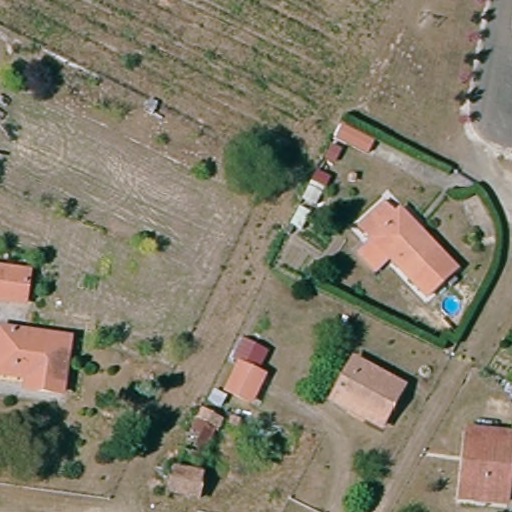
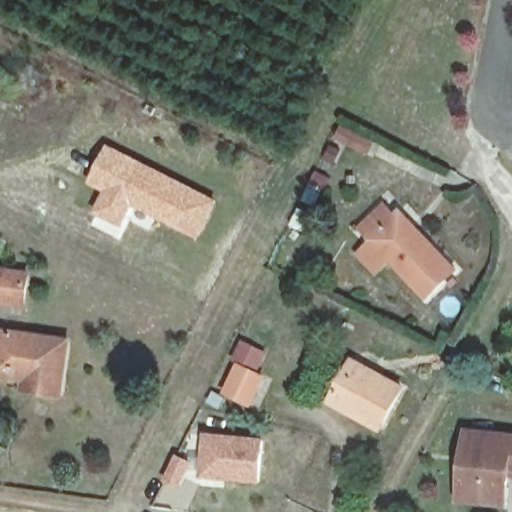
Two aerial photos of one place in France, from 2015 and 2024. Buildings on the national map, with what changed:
unchanged [(376,158),(343,142),(350,130),(382,145),(376,158)]
new [(108,143),(219,198),(197,238),(133,207),(123,229),(103,220),(101,222),(90,218),(103,191),(88,183),(108,143)]
new [(331,177),(317,207),(302,200),(316,170),(331,177)]
unchanged [(455,267),(424,297),(355,225),(381,201),(393,213),(398,208),(455,267)]
unchanged [(0,301),(0,274),(26,276),(23,303),(0,301)]
unchanged [(0,378),(0,333),(65,340),(58,397),(35,394),(20,392),(21,380),(0,378)]
unchanged [(250,367),(236,360),(229,357),(238,339),(259,349),(250,367)]
unchanged [(379,420),(351,406),(346,415),(327,406),(348,362),(396,386),(379,420)]
unchanged [(243,400),(221,389),(234,363),(257,374),(243,400)]
demolished [(207,420),(203,432),(207,435),(187,476),(192,482),(189,499),(160,495),(164,474),(197,416),(207,420)]
unchanged [(486,487),(456,485),(457,466),(459,443),(460,423),(512,426),(512,462),(511,462),(510,474),(508,490),(486,487)]
new [(199,430),(264,437),(260,483),(197,477),(199,430)]
new [(177,453),(192,461),(178,488),(164,482),(177,453)]

